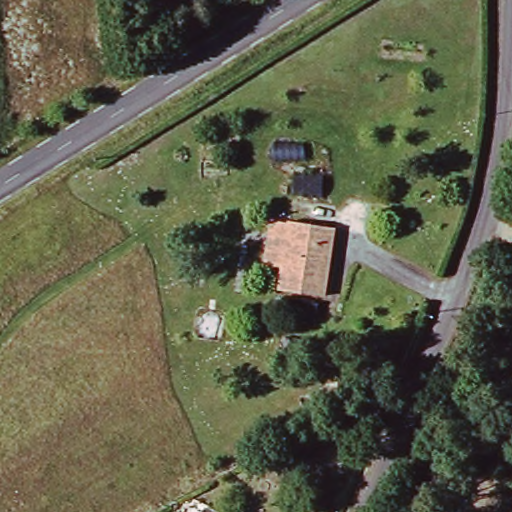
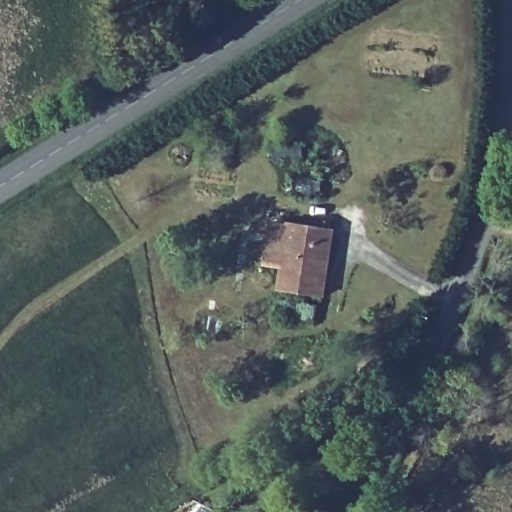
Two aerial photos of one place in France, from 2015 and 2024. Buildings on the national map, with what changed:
unchanged [(327,234),(317,295),(272,288),(283,226),(327,234)]

